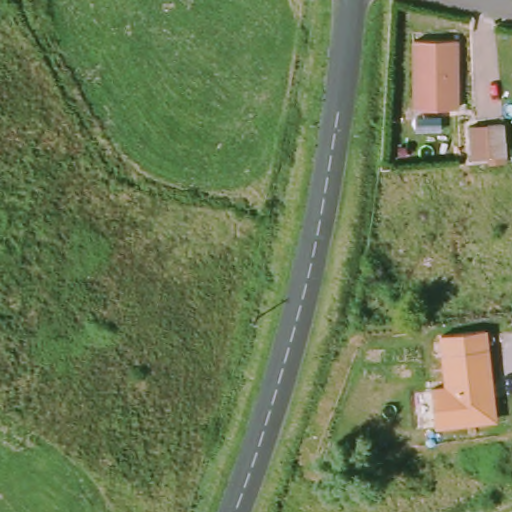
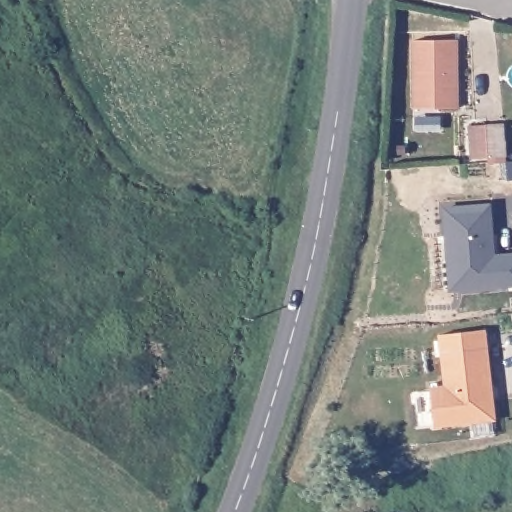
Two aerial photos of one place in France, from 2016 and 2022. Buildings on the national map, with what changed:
unchanged [(459,109),(417,109),(417,40),(461,41),(459,109)]
unchanged [(503,121),(506,156),(486,157),(472,158),(470,124),(485,123),(503,121)]
new [(442,206),(491,203),(495,254),(512,253),(512,288),(449,292),(442,206)]
unchanged [(430,384),(445,383),(441,330),(490,327),(494,384),(489,384),(491,396),(496,396),(497,417),(433,422),(430,384)]

